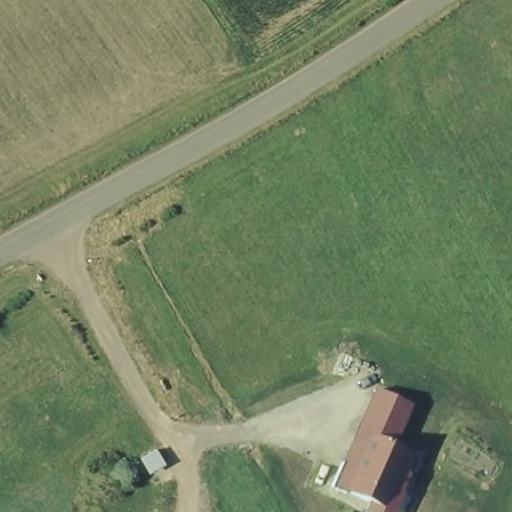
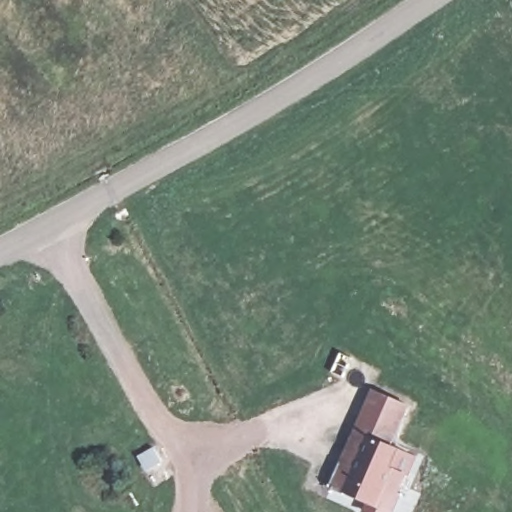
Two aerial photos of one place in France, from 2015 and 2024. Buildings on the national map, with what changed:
unchanged [(396,445),(423,456),(403,512),(370,512),(374,503),(334,488),(375,384),(415,403),(396,445)]

